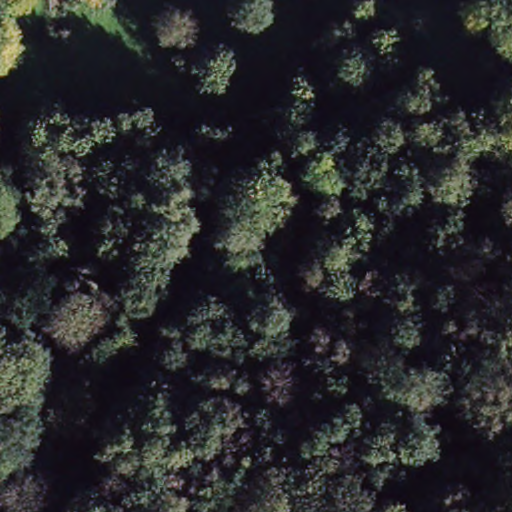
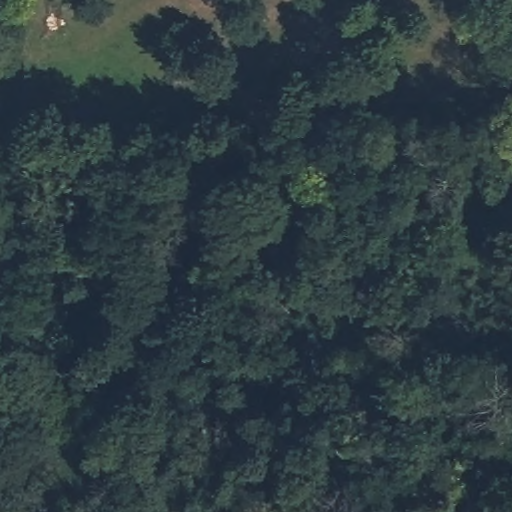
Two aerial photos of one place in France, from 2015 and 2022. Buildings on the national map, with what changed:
unchanged [(110,111),(122,111),(124,111),(134,111),(135,129),(111,128),(109,111),(110,111)]

